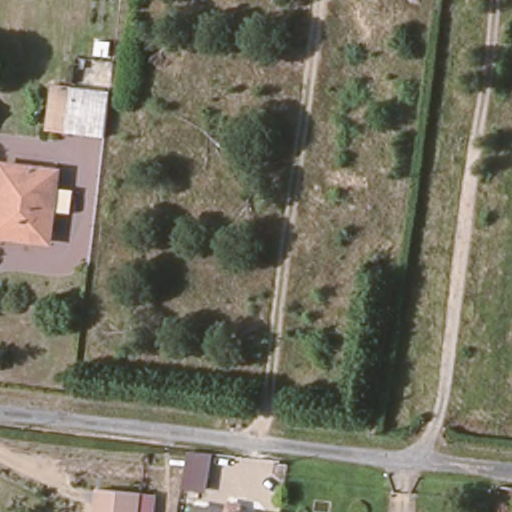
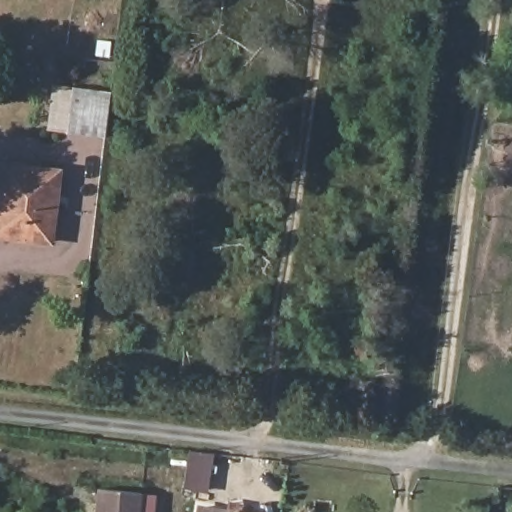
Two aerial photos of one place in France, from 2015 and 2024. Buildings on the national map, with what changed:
unchanged [(50,129),(56,84),(111,90),(106,136),(50,129)]
unchanged [(3,190),(5,166),(60,171),(51,244),(9,239),(0,239),(0,214),(3,190)]
unchanged [(155,512),(101,512),(105,490),(145,495),(157,496),(155,512)]
unchanged [(200,509),(223,512),(200,512),(200,509)]

